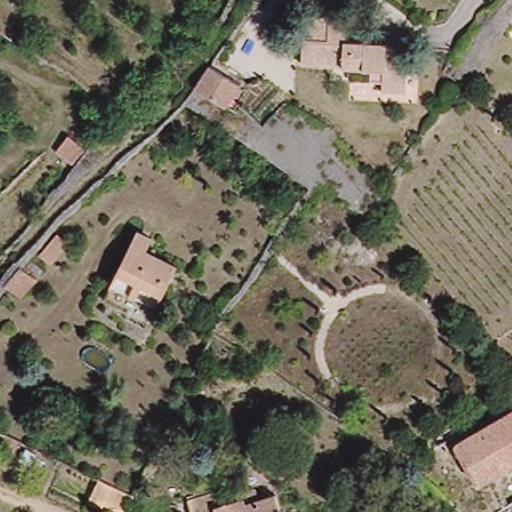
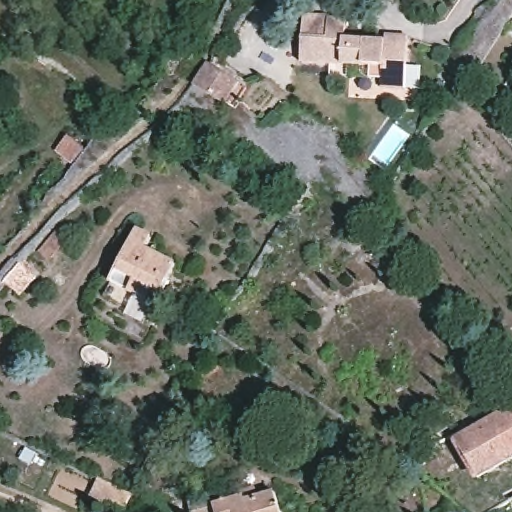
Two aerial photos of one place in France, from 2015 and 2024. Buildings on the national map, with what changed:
unchanged [(332,60),(302,59),(304,33),(305,14),(330,15),(347,16),(346,36),(382,38),(382,32),(405,34),(404,40),(402,86),(378,85),(379,74),(372,74),(373,63),(332,60)]
unchanged [(283,100),(347,139),(372,193),(357,214),(320,186),(315,189),(182,102),(195,82),(210,60),(240,81),(227,100),(263,121),(283,100)]
unchanged [(80,155),(63,140),(76,124),(95,142),(80,155)]
unchanged [(170,237),(165,250),(177,257),(150,300),(107,271),(139,220),(170,237)]
unchanged [(15,297),(0,283),(0,275),(23,252),(42,269),(15,297)]
unchanged [(483,485),(458,452),(512,412),(512,464),(483,485)]
unchanged [(133,494),(126,512),(120,512),(90,497),(100,478),(133,494)]
unchanged [(275,495),(282,512),(213,512),(212,507),(275,495)]

